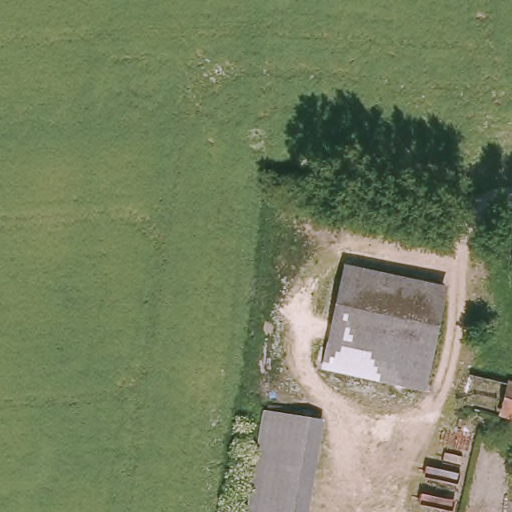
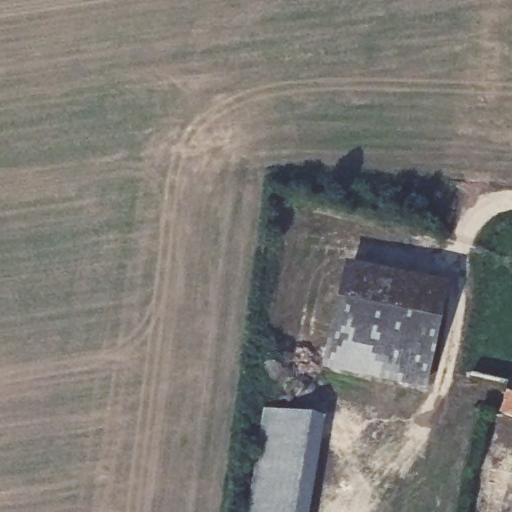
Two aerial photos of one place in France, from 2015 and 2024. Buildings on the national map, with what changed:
unchanged [(331,265),(450,282),(441,368),(439,386),(317,370),(325,335),(322,335),(331,265)]
unchanged [(477,377),(479,368),(512,380),(512,420),(472,406),(477,377)]
unchanged [(268,412),(327,424),(312,512),(250,512),(268,412)]

